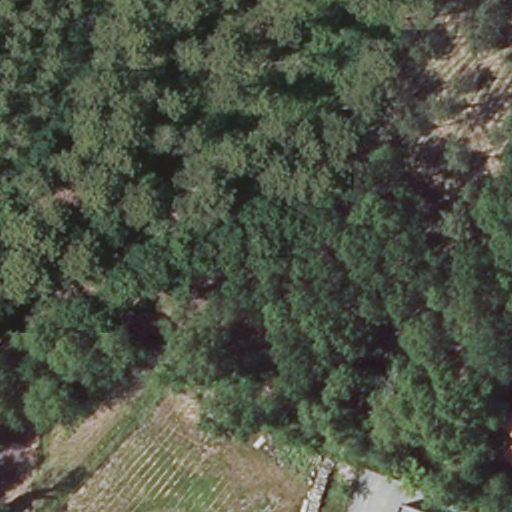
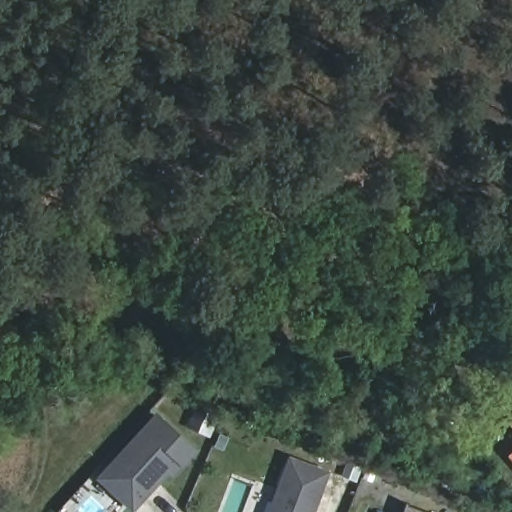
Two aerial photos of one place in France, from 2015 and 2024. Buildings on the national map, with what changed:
new [(131,512),(96,478),(157,412),(199,450),(184,468),(175,479),(169,475),(134,512),(131,512)]
new [(268,512),(290,457),(330,472),(316,512),(268,512)]
unchanged [(427,512),(404,512),(407,504),(427,512)]

